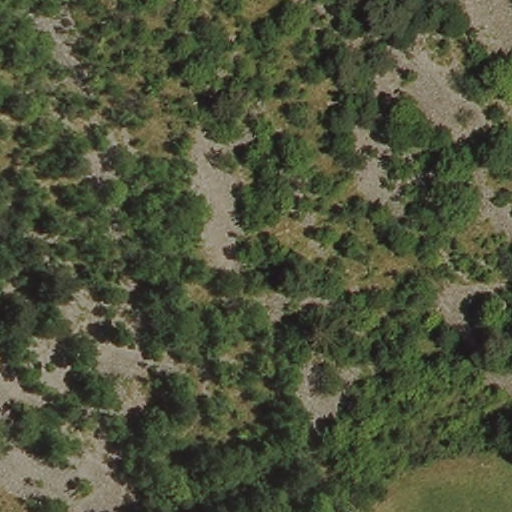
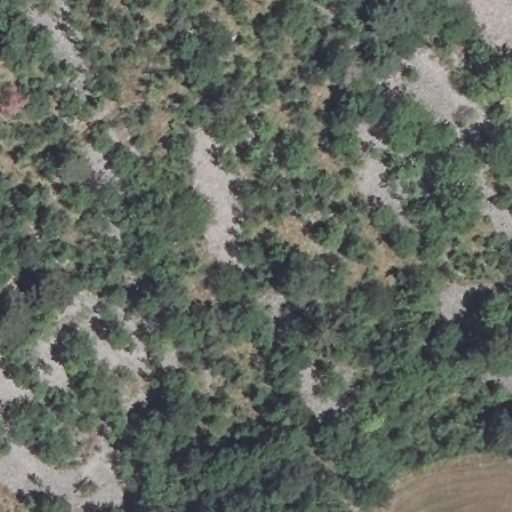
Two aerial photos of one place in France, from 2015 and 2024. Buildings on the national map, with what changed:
[]

